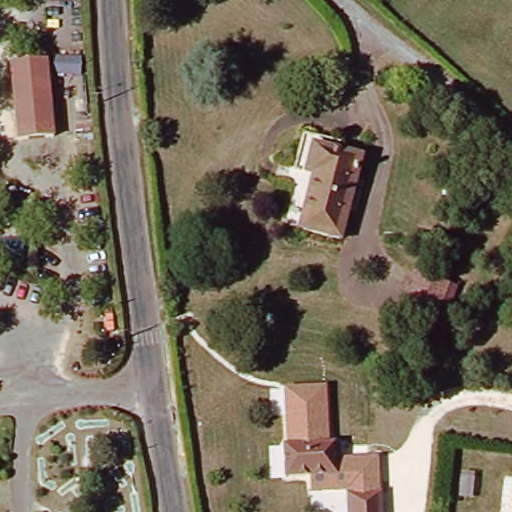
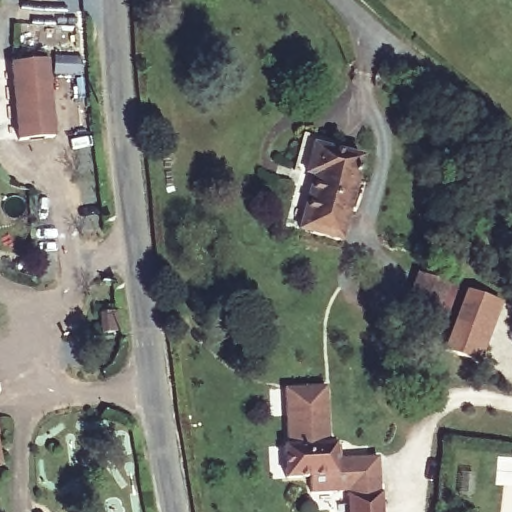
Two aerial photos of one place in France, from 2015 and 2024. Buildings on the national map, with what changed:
unchanged [(46,58),(54,137),(16,140),(9,61),(46,58)]
unchanged [(304,235),(316,191),(294,184),(310,124),(349,135),(344,154),(368,161),(346,246),(304,235)]
unchanged [(413,317),(424,269),(454,277),(444,324),(433,322),(413,317)]
new [(467,292),(502,305),(481,364),(445,351),(467,292)]
unchanged [(330,442),(340,441),(341,460),(381,457),(383,512),(347,512),(346,492),(311,494),(310,477),(285,478),(283,445),(286,444),(283,389),(326,385),(330,442)]

